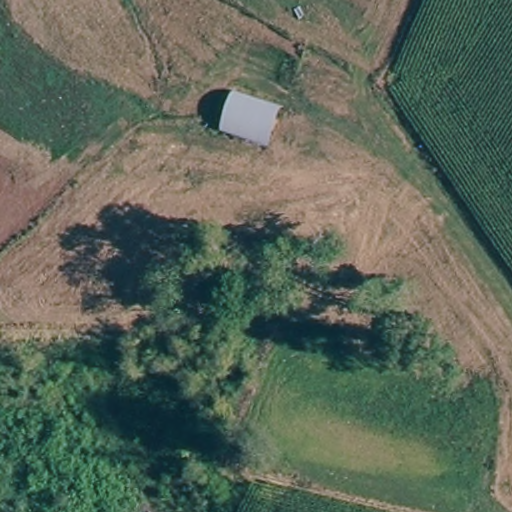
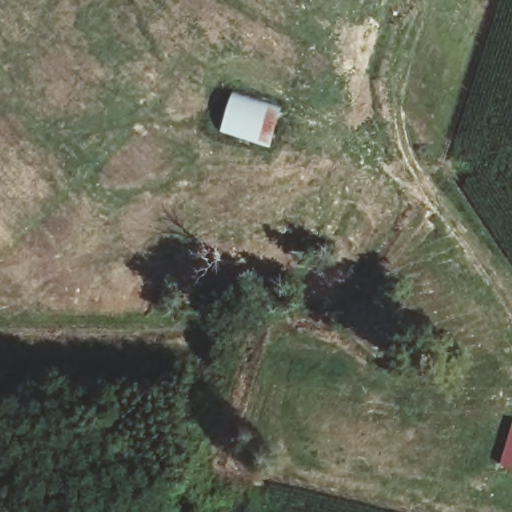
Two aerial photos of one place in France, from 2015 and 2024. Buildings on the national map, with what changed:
unchanged [(273,143),(215,131),(221,98),(280,113),(273,143)]
new [(512,420),(512,469),(498,465),(511,420),(512,420)]

